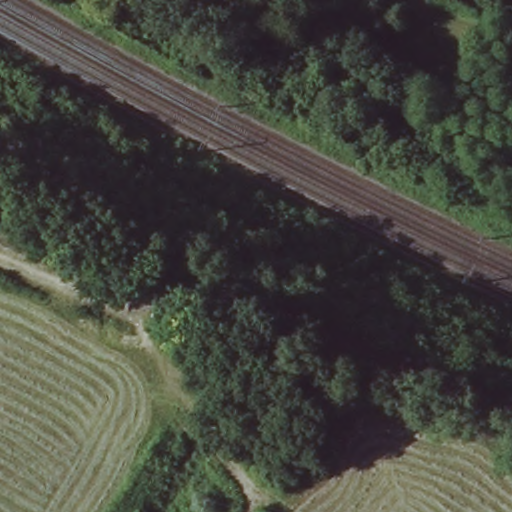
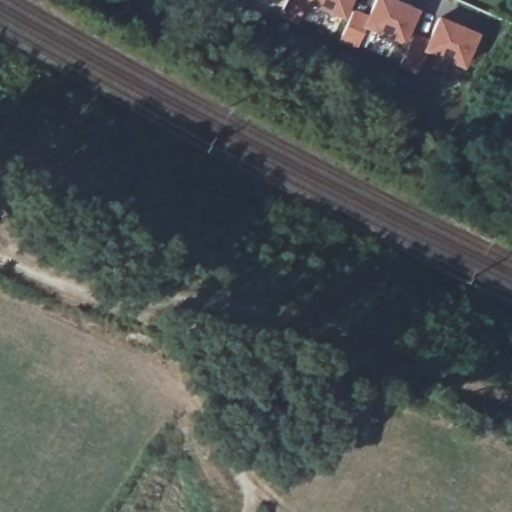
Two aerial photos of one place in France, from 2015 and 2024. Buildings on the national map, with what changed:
new [(308,7),(297,25),(281,17),(288,0),(354,0),(344,21),(308,7)]
new [(369,30),(358,50),(339,41),(355,10),(367,16),(374,0),(393,0),(421,12),(403,46),(369,30)]
new [(479,35),(463,71),(428,55),(419,75),(402,67),(416,35),(428,39),(437,17),(479,35)]

